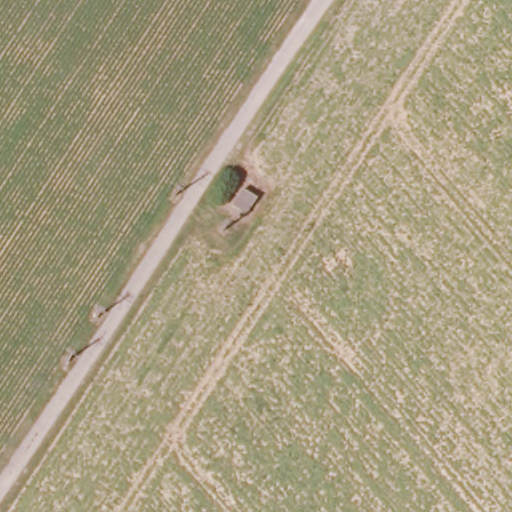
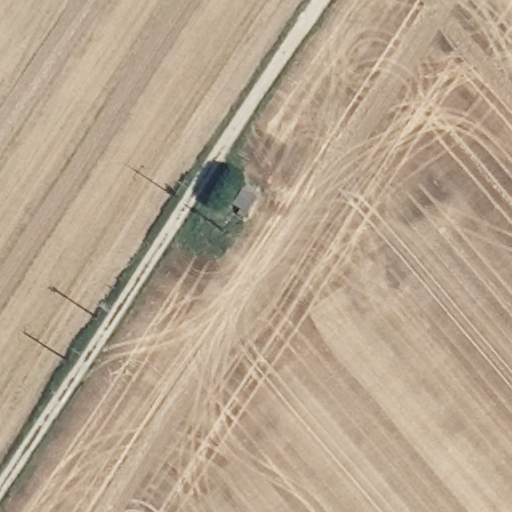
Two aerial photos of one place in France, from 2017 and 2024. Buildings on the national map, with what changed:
unchanged [(229,201),(240,184),(254,194),(245,211),(229,201)]

